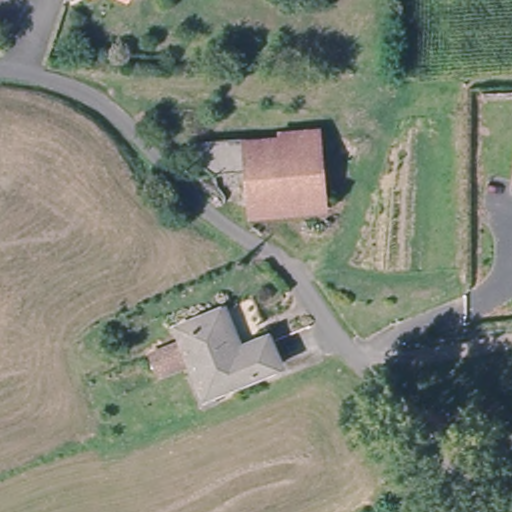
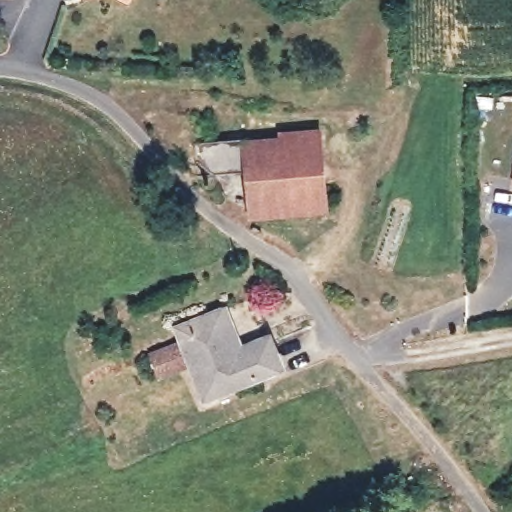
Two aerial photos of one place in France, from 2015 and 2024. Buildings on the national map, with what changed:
unchanged [(330,212),(257,219),(254,174),(216,175),(204,160),(203,138),(324,132),(330,212)]
unchanged [(268,369),(201,398),(175,329),(215,310),(235,359),(261,349),(268,369)]

